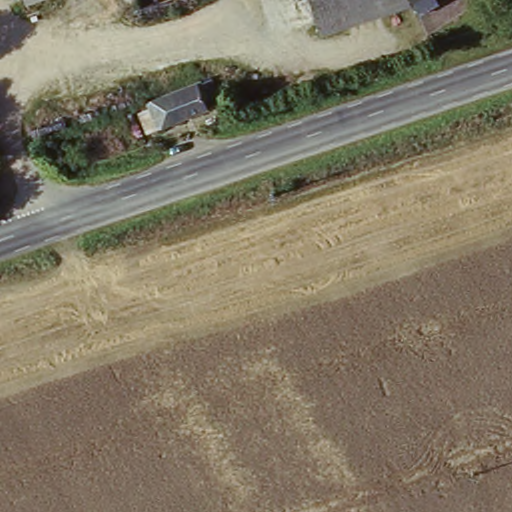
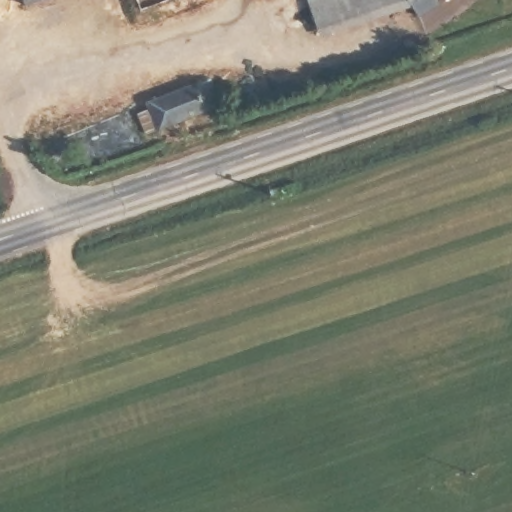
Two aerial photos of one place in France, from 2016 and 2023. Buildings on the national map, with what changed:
unchanged [(27,0),(43,0),(29,5),(27,0)]
unchanged [(424,17),(417,3),(327,37),(313,0),(442,0),(444,5),(424,17)]
unchanged [(144,114),(154,109),(151,104),(215,78),(226,105),(164,131),(153,135),(144,114)]

